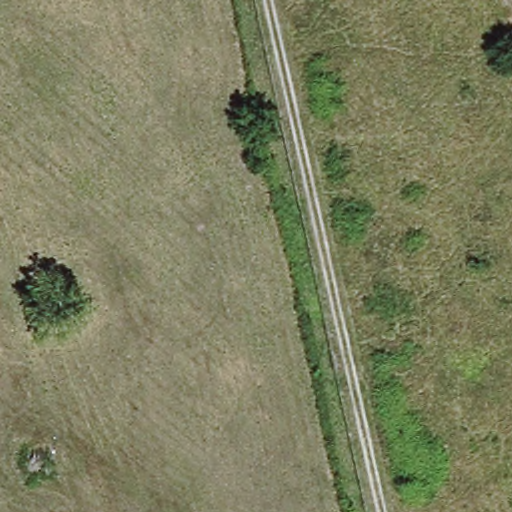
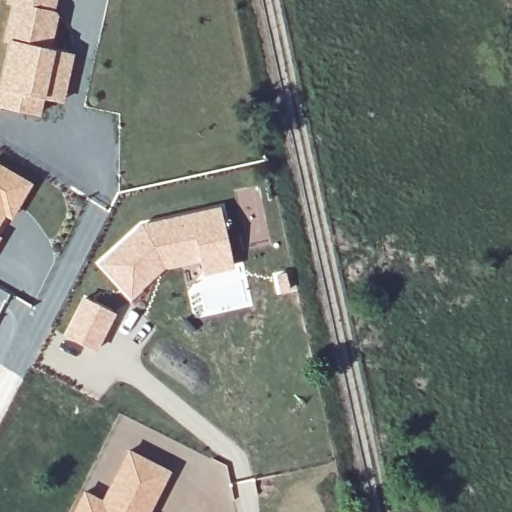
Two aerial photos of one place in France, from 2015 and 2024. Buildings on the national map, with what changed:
new [(16,5),(12,5),(12,0),(56,0),(55,11),(57,16),(52,48),(56,49),(47,99),(44,116),(2,109),(15,43),(10,42),(16,5)]
new [(56,49),(75,53),(66,103),(47,99),(56,49)]
new [(11,219),(4,215),(0,221),(0,166),(31,184),(11,219)]
new [(141,221),(222,204),(235,267),(202,275),(199,263),(166,269),(130,299),(95,262),(141,221)]
new [(82,295),(116,312),(97,351),(62,336),(82,295)]
new [(84,489),(101,498),(127,448),(172,470),(149,512),(71,512),(84,489)]

